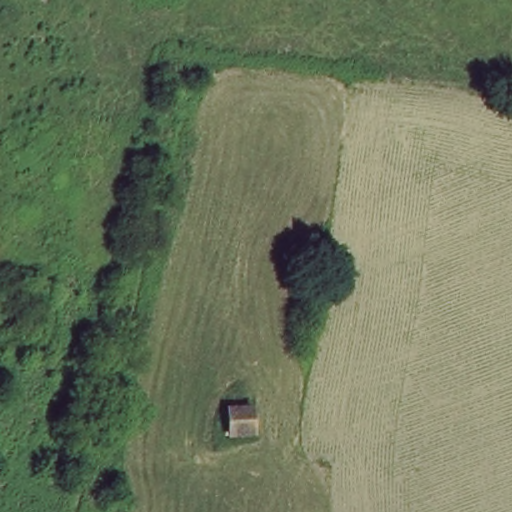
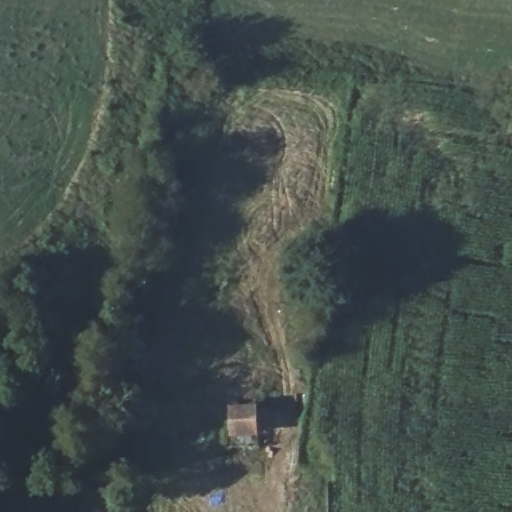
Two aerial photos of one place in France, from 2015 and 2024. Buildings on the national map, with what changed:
unchanged [(237,410),(260,409),(260,433),(238,435),(237,410)]

